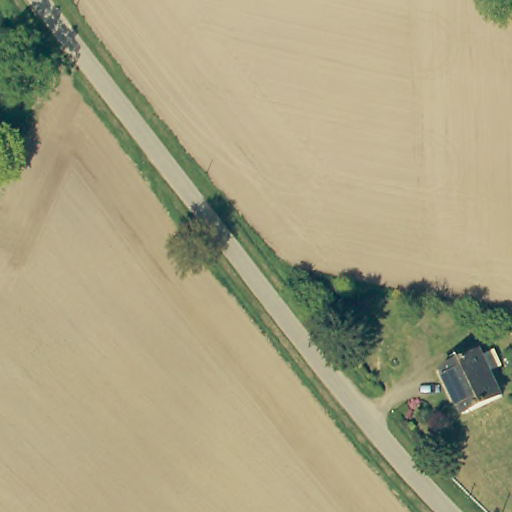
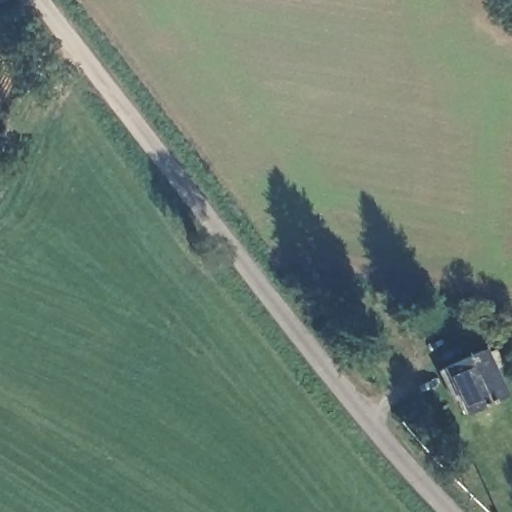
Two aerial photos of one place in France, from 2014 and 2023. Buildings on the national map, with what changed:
unchanged [(493,395),(455,414),(433,369),(472,351),(493,395)]

